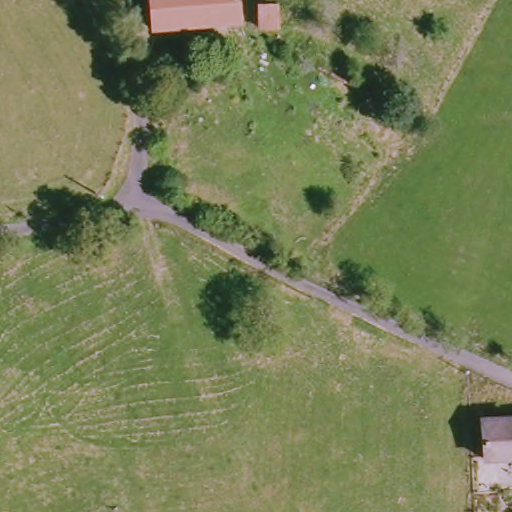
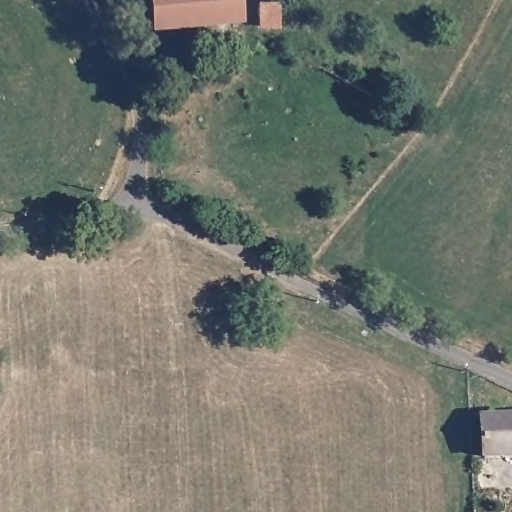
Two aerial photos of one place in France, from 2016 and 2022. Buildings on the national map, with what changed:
unchanged [(237,18),(159,27),(156,0),(235,0),(237,18)]
unchanged [(273,33),(270,0),(286,0),(287,32),(273,33)]
unchanged [(488,420),(512,418),(512,459),(490,461),(488,420)]

